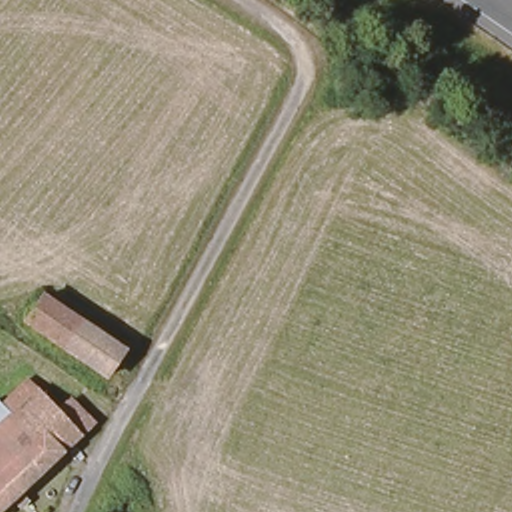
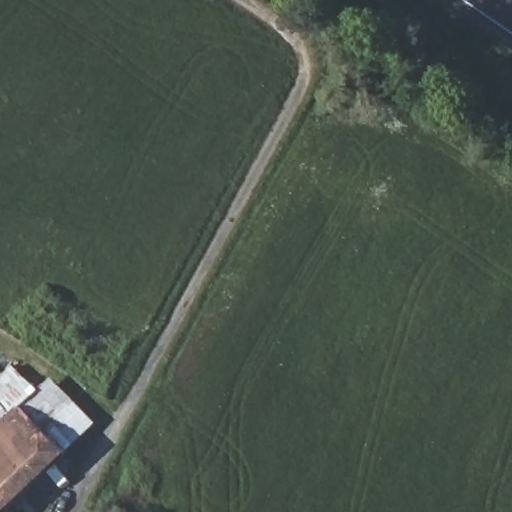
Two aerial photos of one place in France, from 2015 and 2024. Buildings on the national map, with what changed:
demolished [(48,298),(128,352),(112,374),(32,319),(48,298)]
unchanged [(9,416),(2,407),(28,384),(60,416),(73,405),(91,429),(5,512),(0,512),(0,425),(9,416)]

